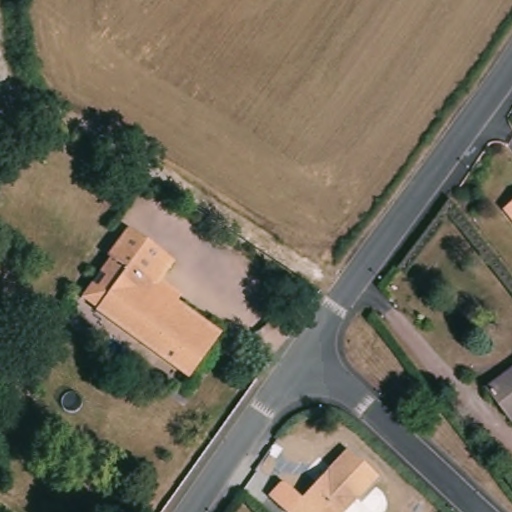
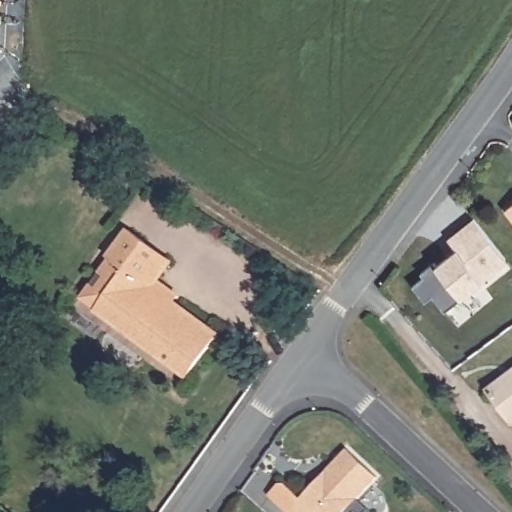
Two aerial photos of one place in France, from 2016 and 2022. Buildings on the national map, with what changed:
unchanged [(504,211),(512,205),(512,220),(504,211)]
new [(423,276),(420,272),(434,261),(437,265),(456,249),(448,239),(473,219),(507,262),(444,312),(432,296),(424,301),(412,285),(423,276)]
unchanged [(133,231),(177,263),(160,286),(224,333),(187,382),(79,302),(133,231)]
unchanged [(512,378),(512,416),(494,392),(512,378)]
unchanged [(348,512),(295,512),(276,495),(287,482),(292,482),(309,497),(351,449),(381,474),(348,512)]

